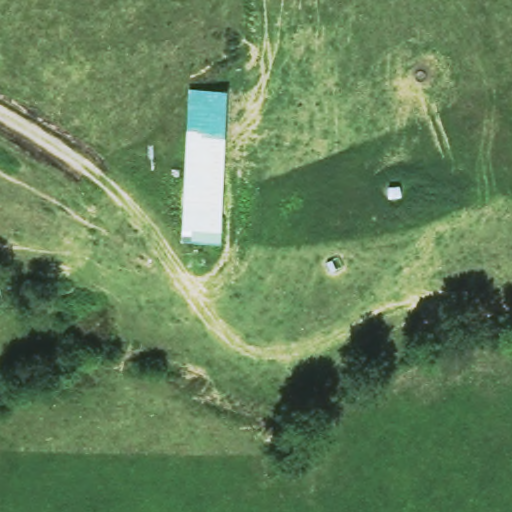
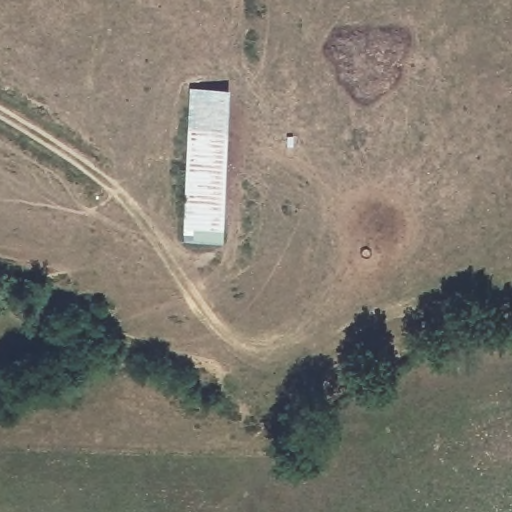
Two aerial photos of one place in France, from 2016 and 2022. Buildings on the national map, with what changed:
unchanged [(180,241),(188,90),(227,92),(220,241),(180,241)]

